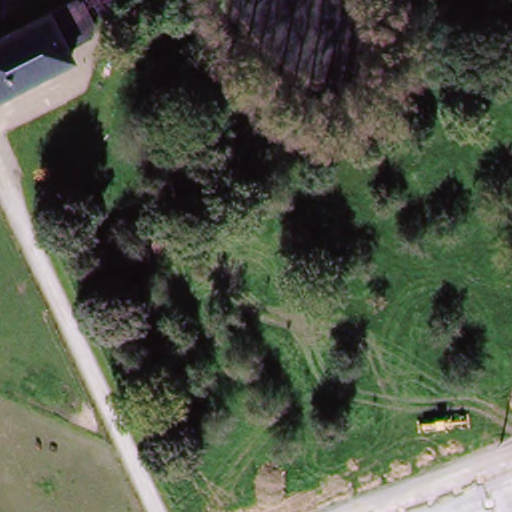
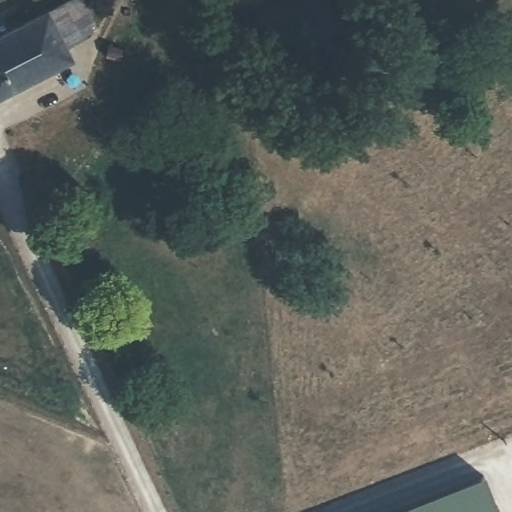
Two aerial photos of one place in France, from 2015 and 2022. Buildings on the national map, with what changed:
unchanged [(45,12),(70,0),(72,0),(91,38),(63,51),(45,12)]
unchanged [(45,12),(63,51),(69,62),(0,97),(0,34),(45,12)]
demolished [(508,512),(396,512),(492,473),(508,512)]
new [(389,512),(484,474),(499,512),(389,512)]

